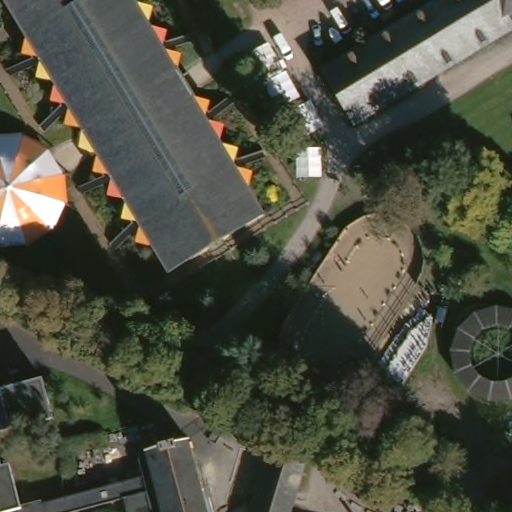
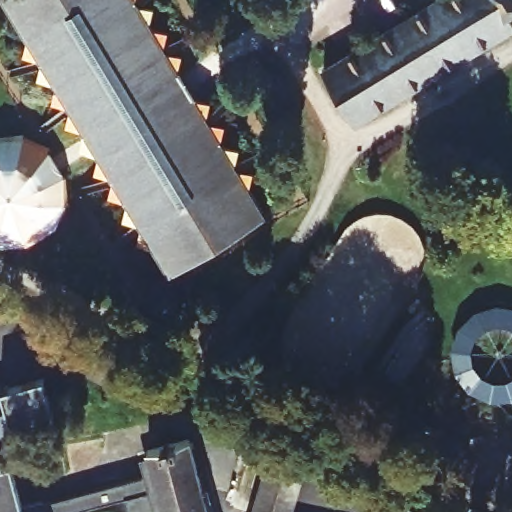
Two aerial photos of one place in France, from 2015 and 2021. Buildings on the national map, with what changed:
unchanged [(167,274),(3,0),(133,0),(263,216),(167,274)]
unchanged [(358,130),(326,75),(452,0),(512,0),(512,22),(510,23),(512,28),(512,37),(358,130)]
unchanged [(163,512),(145,446),(150,445),(183,435),(188,434),(190,437),(200,475),(210,512),(163,512)]
unchanged [(8,455),(22,504),(42,498),(46,512),(0,512),(0,443),(4,456),(8,455)]
unchanged [(253,480),(246,456),(267,462),(270,450),(305,459),(292,512),(253,512),(261,482),(253,480)]

